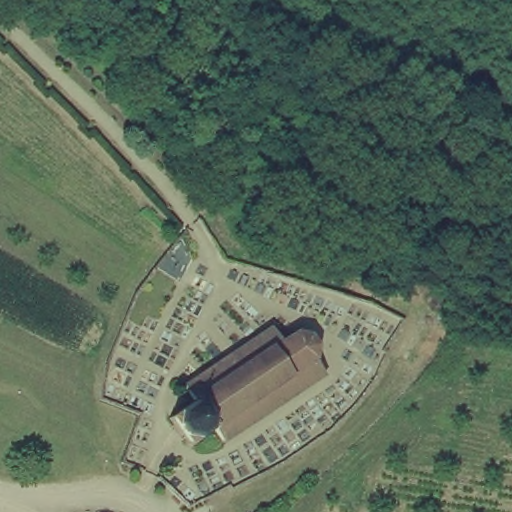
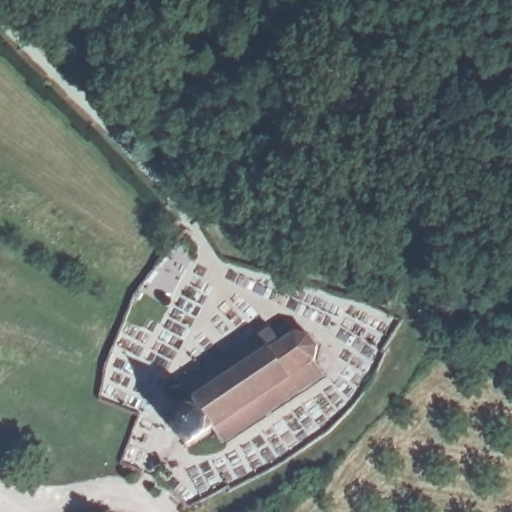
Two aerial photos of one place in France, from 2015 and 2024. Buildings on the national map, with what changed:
unchanged [(201,392),(193,377),(281,318),(290,332),(303,326),(317,326),(326,337),(324,353),(333,366),(232,436),(223,423),(194,441),(174,410),(201,392)]

